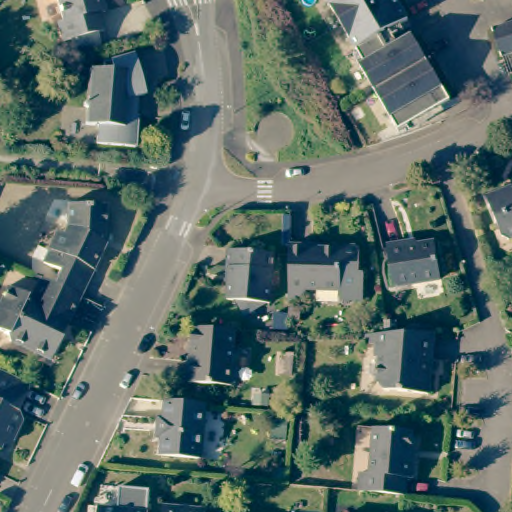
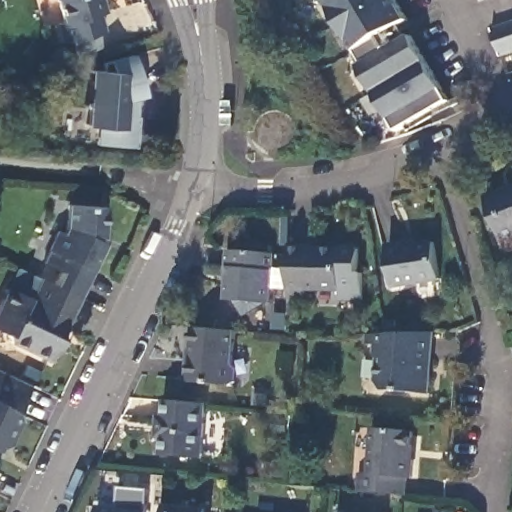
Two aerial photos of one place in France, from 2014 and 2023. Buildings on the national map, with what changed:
unchanged [(79,53),(75,54),(71,40),(63,42),(58,22),(62,21),(56,0),(102,0),(105,10),(100,12),(105,30),(98,32),(102,47),(79,53)]
unchanged [(383,36),(390,49),(413,37),(452,102),(401,132),(361,66),(365,64),(327,0),(396,0),(409,22),(383,36)]
unchanged [(483,0),(486,0),(483,1),(483,0)]
unchanged [(492,30),(512,23),(512,53),(502,57),(492,30)]
unchanged [(144,143),(105,140),(104,122),(87,122),(85,106),(80,101),(83,95),(81,72),(105,67),(104,61),(137,53),(141,96),(142,112),(144,143)]
unchanged [(499,232),(485,193),(501,186),(502,189),(512,185),(512,234),(507,236),(499,232)]
unchanged [(58,270),(44,263),(58,234),(62,235),(66,227),(68,205),(105,208),(103,236),(100,243),(105,245),(81,297),(52,283),(58,270)]
unchanged [(297,242),(297,244),(332,245),(334,242),(347,242),(350,245),(349,269),(354,269),(354,295),(331,295),(331,285),(297,285),(297,295),(279,294),(279,242),(297,242)]
unchanged [(442,280),(395,287),(389,247),(408,244),(408,247),(436,243),(442,280)]
unchanged [(271,305),(228,303),(231,268),(227,268),(229,251),(274,254),(271,305)]
unchanged [(50,361),(10,342),(7,335),(0,331),(0,305),(8,288),(30,299),(38,284),(30,280),(32,274),(41,278),(52,283),(81,297),(67,325),(60,338),(50,361)]
unchanged [(232,365),(239,368),(236,383),(231,388),(189,383),(193,328),(235,331),(232,365)]
unchanged [(431,390),(387,386),(381,378),(378,378),(379,369),(381,369),(381,357),(378,350),(379,341),(368,340),(369,330),(380,330),(386,329),(406,329),(435,328),(433,362),(432,370),(431,390)]
unchanged [(17,406),(20,417),(11,439),(1,442),(0,443),(0,365),(30,379),(17,406)]
unchanged [(199,455),(160,452),(161,434),(156,434),(158,414),(163,414),(164,398),(205,401),(199,455)]
unchanged [(362,468),(373,468),(377,423),(414,427),(411,454),(415,454),(414,474),(408,474),(407,493),(406,493),(360,489),(362,468)]
unchanged [(206,512),(163,512),(164,503),(207,507),(206,512)]
unchanged [(99,512),(100,504),(148,508),(147,512),(99,512)]

